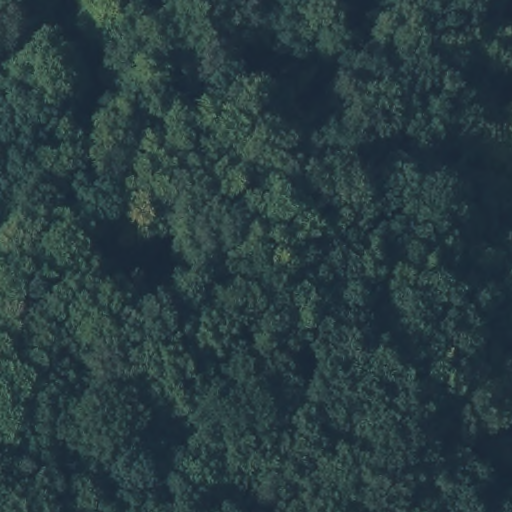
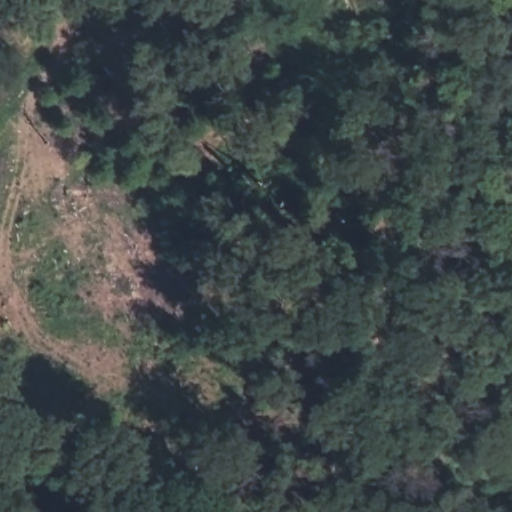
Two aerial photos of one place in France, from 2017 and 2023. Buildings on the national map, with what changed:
[]

